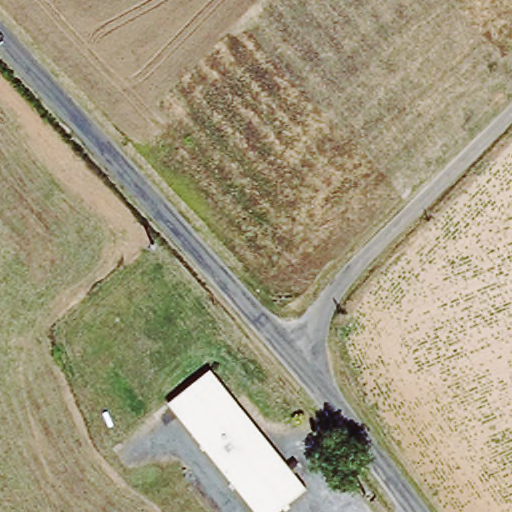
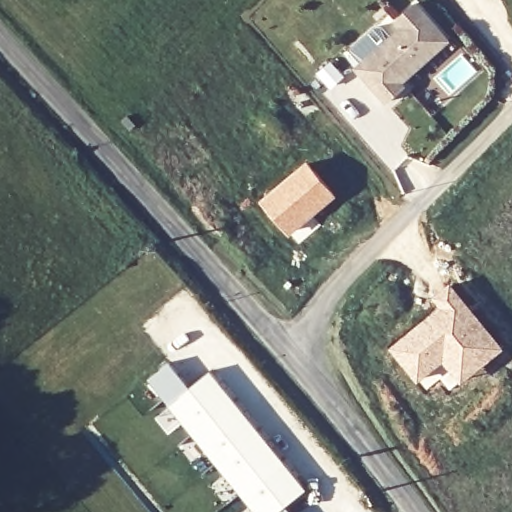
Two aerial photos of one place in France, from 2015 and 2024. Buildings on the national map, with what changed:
new [(379,26),(385,26),(394,36),(405,26),(399,20),(419,2),(451,40),(410,76),(407,75),(402,80),(407,85),(388,101),(358,67),(365,61),(354,48),(379,26)]
new [(307,165),(332,195),(289,231),(263,200),(307,165)]
new [(438,305),(431,297),(450,280),(505,348),(448,391),(439,380),(425,391),(387,346),(438,305)]
unchanged [(170,408),(210,375),(307,492),(282,512),(256,512),(170,408)]

